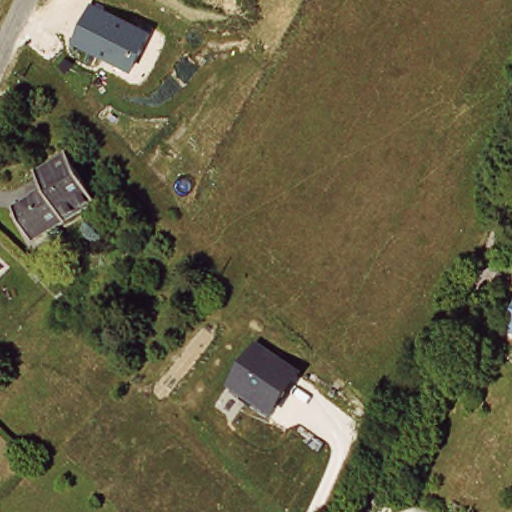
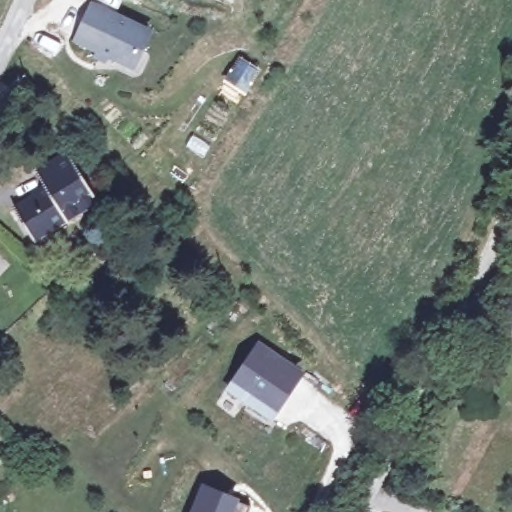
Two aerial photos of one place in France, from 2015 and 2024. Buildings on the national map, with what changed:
unchanged [(139,71),(73,44),(94,0),(96,0),(159,31),(139,71)]
unchanged [(67,144),(100,188),(38,236),(16,207),(47,182),(37,168),(67,144)]
unchanged [(303,373),(277,415),(231,384),(262,341),(303,373)]
new [(240,498),(237,505),(250,509),(249,512),(191,512),(203,485),(240,498)]

